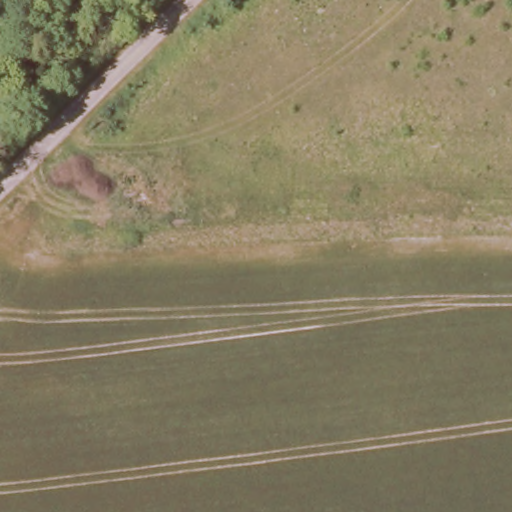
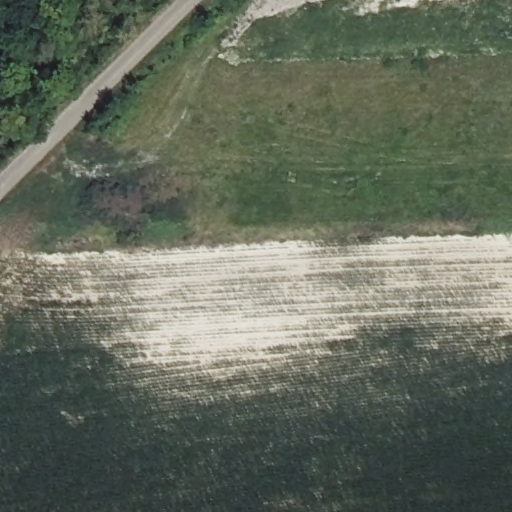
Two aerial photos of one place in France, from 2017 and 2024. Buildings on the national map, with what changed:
unchanged [(0,35),(0,18),(5,34),(0,35)]

